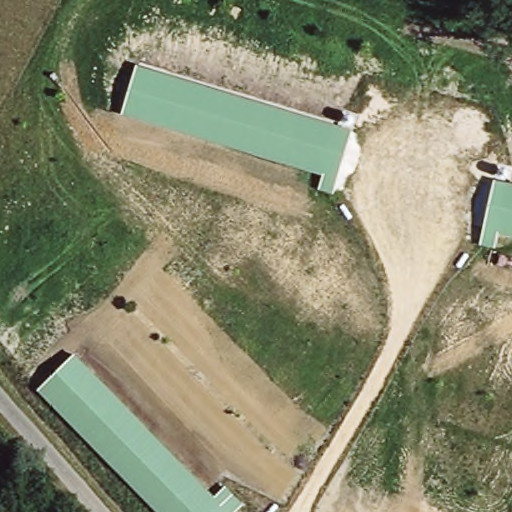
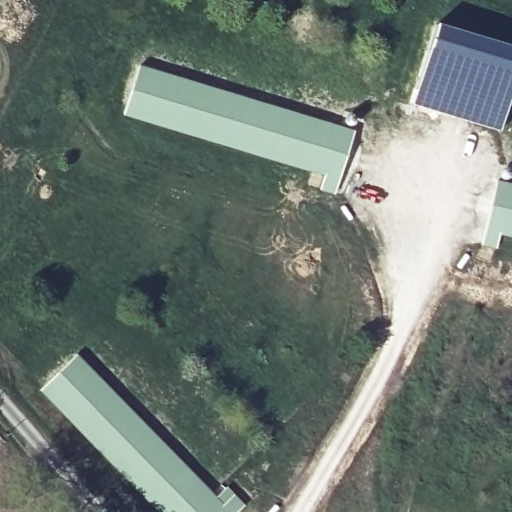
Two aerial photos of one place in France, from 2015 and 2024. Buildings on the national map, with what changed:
new [(512,92),(501,130),(411,104),(434,24),(512,46),(512,92)]
unchanged [(356,128),(337,193),(321,190),(325,174),(124,115),(140,65),(356,128)]
unchanged [(512,235),(504,234),(499,250),(483,246),(497,180),(512,183),(512,235)]
unchanged [(216,495),(226,484),(245,503),(236,512),(159,512),(40,391),(76,355),(216,495)]

